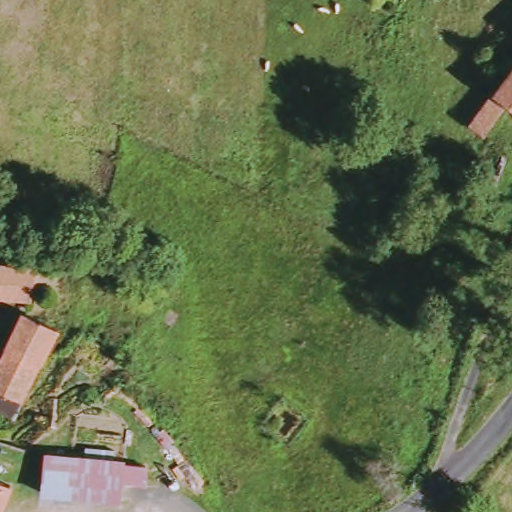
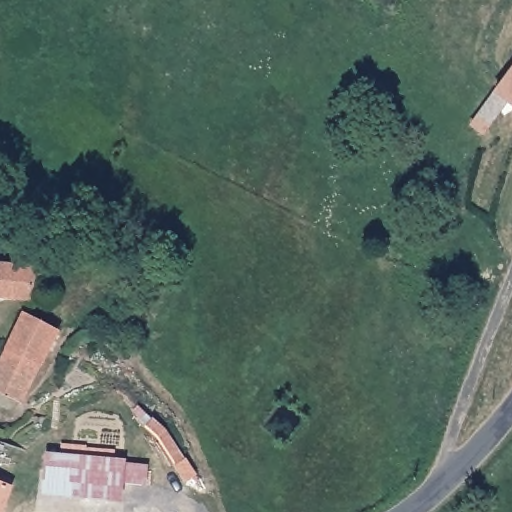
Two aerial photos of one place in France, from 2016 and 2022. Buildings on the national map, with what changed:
unchanged [(474,126),(512,78),(512,115),(485,135),(474,126)]
unchanged [(10,264),(6,295),(6,300),(0,299),(0,262),(10,264)]
unchanged [(10,264),(46,269),(41,300),(6,295),(10,264)]
unchanged [(11,344),(30,308),(62,327),(45,362),(11,344)]
unchanged [(0,414),(0,367),(11,344),(45,362),(25,403),(15,421),(0,414)]
unchanged [(127,465),(125,500),(52,495),(52,479),(52,460),(60,461),(127,465)]
unchanged [(13,486),(5,512),(0,512),(0,480),(13,486)]

